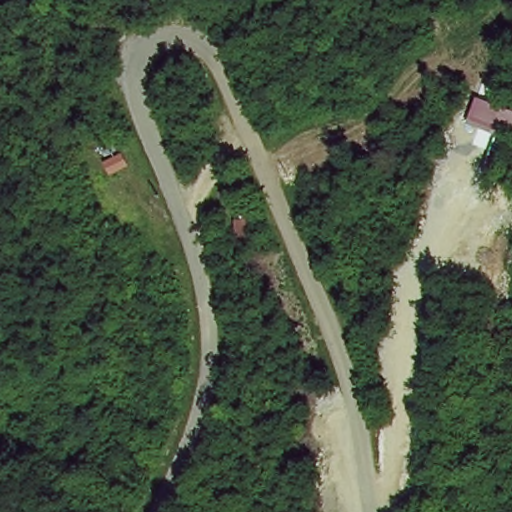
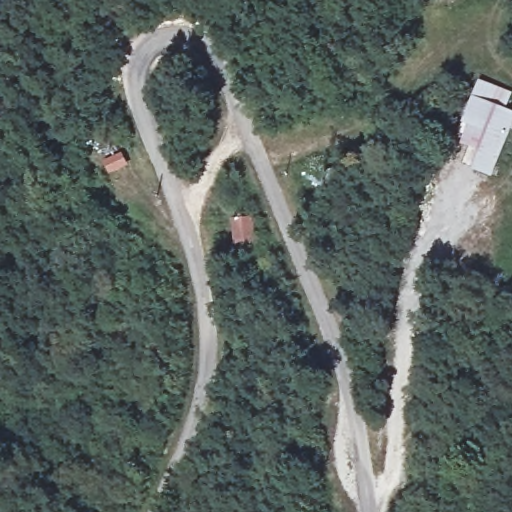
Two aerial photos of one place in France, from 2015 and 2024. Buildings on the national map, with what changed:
new [(512,93),(506,110),(512,112),(512,138),(494,180),(472,171),(487,133),(458,121),(474,80),(512,93)]
unchanged [(258,219),(259,244),(233,245),(234,220),(258,219)]

